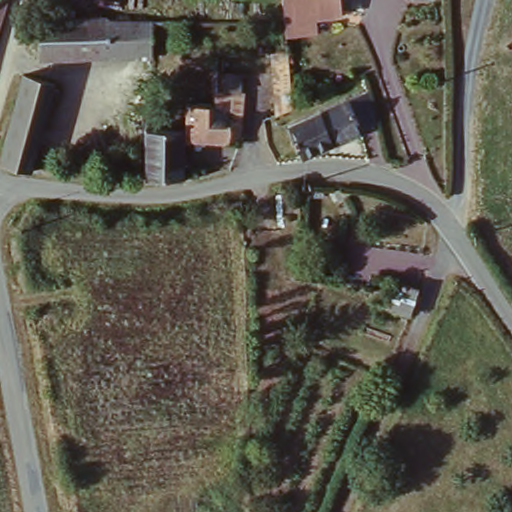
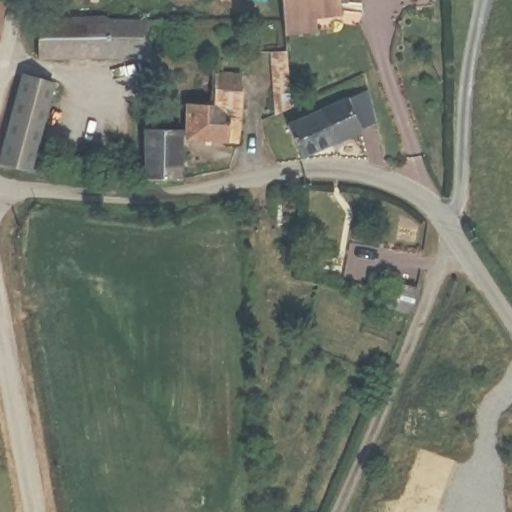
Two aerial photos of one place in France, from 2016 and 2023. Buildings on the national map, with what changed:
unchanged [(0,40),(0,0),(4,0),(11,2),(2,40),(0,40)]
unchanged [(287,25),(282,0),(343,0),(345,23),(320,24),(321,36),(288,38),(288,34),(287,25)]
unchanged [(118,59),(41,59),(42,24),(119,23),(118,59)]
unchanged [(118,59),(119,23),(155,23),(154,60),(118,59)]
unchanged [(259,52),(282,49),(283,106),(266,115),(259,52)]
unchanged [(246,130),(230,143),(186,143),(187,103),(216,103),(215,82),(215,65),(235,64),(236,81),(242,80),(246,130)]
unchanged [(53,88),(37,174),(0,168),(0,160),(20,79),(53,88)]
unchanged [(306,152),(293,123),(327,108),(360,95),(377,121),(306,152)]
unchanged [(174,182),(138,182),(140,142),(176,144),(174,182)]
unchanged [(407,316),(385,308),(395,285),(417,292),(407,316)]

